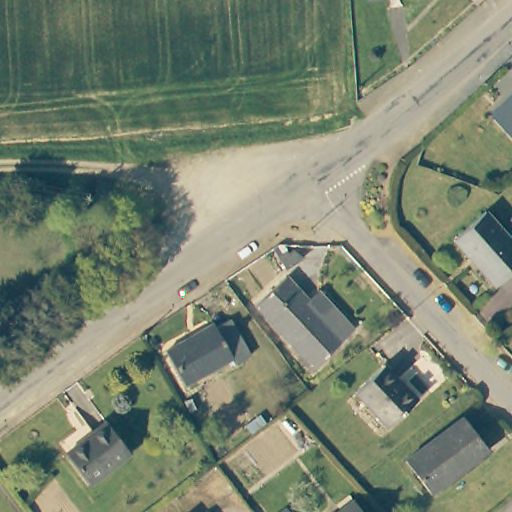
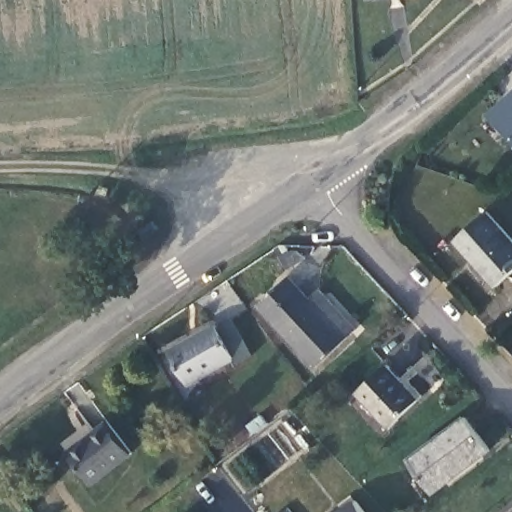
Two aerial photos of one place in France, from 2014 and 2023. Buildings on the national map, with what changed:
unchanged [(512,85),(512,141),(484,112),(512,85)]
unchanged [(512,279),(500,291),(459,246),(490,216),(512,241),(512,279)]
unchanged [(322,299),(352,330),(342,339),(312,368),(255,308),(284,281),(312,308),(322,299)]
unchanged [(238,356),(191,382),(173,348),(219,322),(238,356)]
unchanged [(418,399),(388,426),(356,390),(385,363),(418,399)]
unchanged [(485,452),(430,496),(406,463),(464,420),(485,452)]
unchanged [(65,455),(84,438),(104,423),(128,452),(107,468),(88,483),(65,455)]
unchanged [(361,512),(342,512),(354,502),(361,512)]

